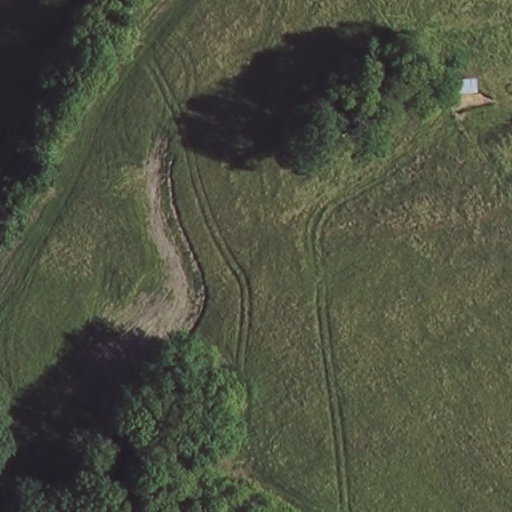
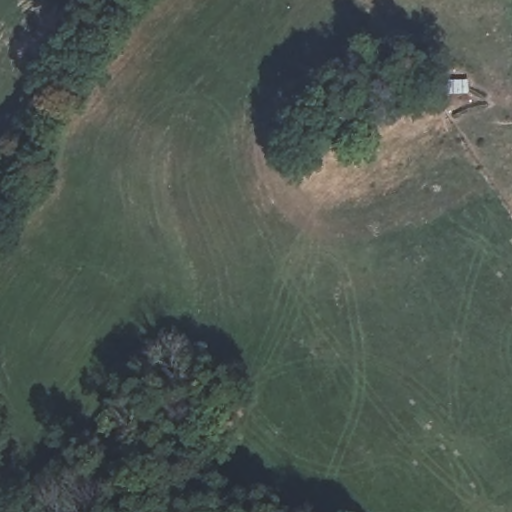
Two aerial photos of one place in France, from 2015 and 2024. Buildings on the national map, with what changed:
unchanged [(449,96),(447,80),(469,78),(470,94),(449,96)]

